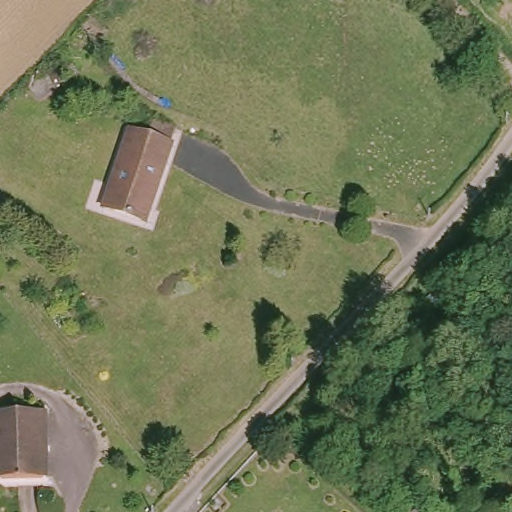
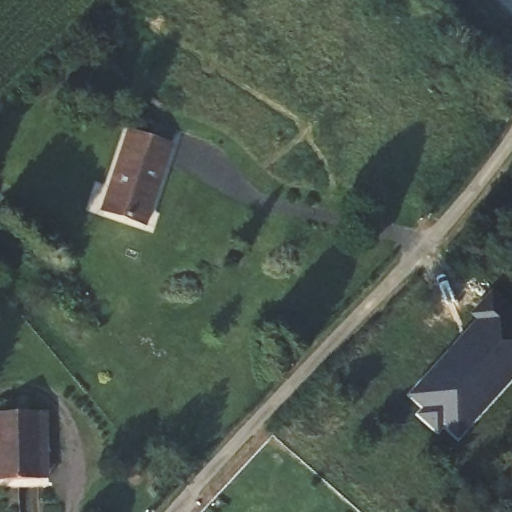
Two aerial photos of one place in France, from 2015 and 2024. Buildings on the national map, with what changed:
unchanged [(150,139),(155,124),(179,133),(174,147),(176,148),(157,197),(151,195),(140,225),(102,211),(131,132),(150,139)]
new [(442,427),(437,434),(415,415),(423,408),(408,395),(477,321),(470,315),(493,288),(512,304),(512,380),(457,441),(442,427)]
unchanged [(45,483),(0,485),(0,416),(45,415),(45,483)]

